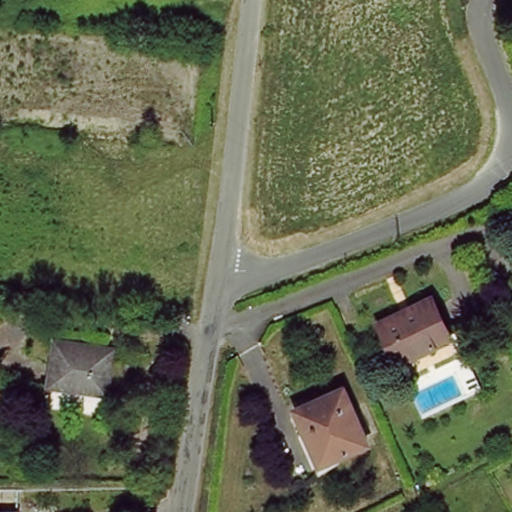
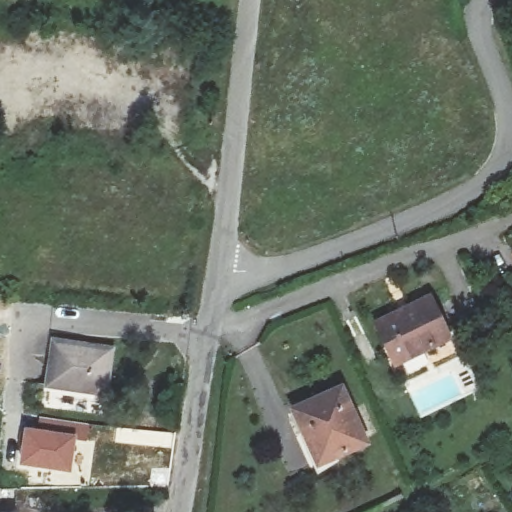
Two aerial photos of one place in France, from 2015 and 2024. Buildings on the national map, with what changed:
unchanged [(507,254),(512,249),(512,261),(507,254)]
unchanged [(382,318),(433,294),(454,334),(402,358),(382,318)]
unchanged [(55,346),(115,353),(110,398),(49,392),(55,346)]
unchanged [(292,411),(335,386),(369,442),(326,467),(292,411)]
new [(24,427),(37,429),(38,416),(91,424),(88,441),(76,440),(72,474),(20,466),(24,427)]

